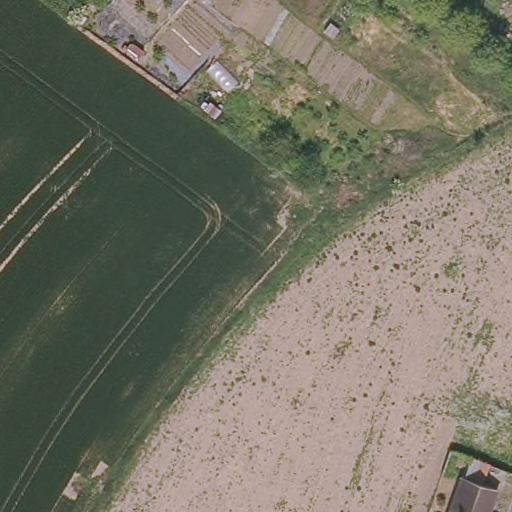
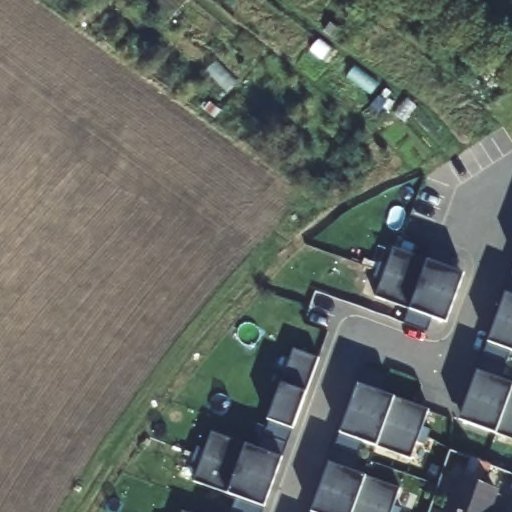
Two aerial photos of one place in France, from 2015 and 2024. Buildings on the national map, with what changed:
new [(403,322),(408,308),(375,296),(393,246),(427,258),(432,244),(455,253),(450,267),(460,271),(465,272),(446,322),(442,320),(432,317),(427,331),(403,322)]
new [(460,420),(477,371),(482,357),(487,342),(505,292),(510,278),(512,272),(512,351),(511,351),(506,365),(501,379),(512,383),(512,439),(465,422),(460,420)]
new [(242,499),(195,482),(212,432),(260,449),(265,435),(270,421),(268,420),(270,416),(293,348),(319,358),(295,425),(293,429),(288,443),(283,457),(266,507),(264,512),(238,512),(242,499)]
new [(330,462),(335,448),(340,433),(358,383),(364,367),(387,376),(382,392),(430,408),(412,458),(364,442),(358,456),(353,471),(402,488),(393,512),(313,512),(330,462)]
unchanged [(485,463),(491,466),(485,485),(497,489),(489,512),(451,512),(462,481),(443,473),(451,451),(485,463)]

